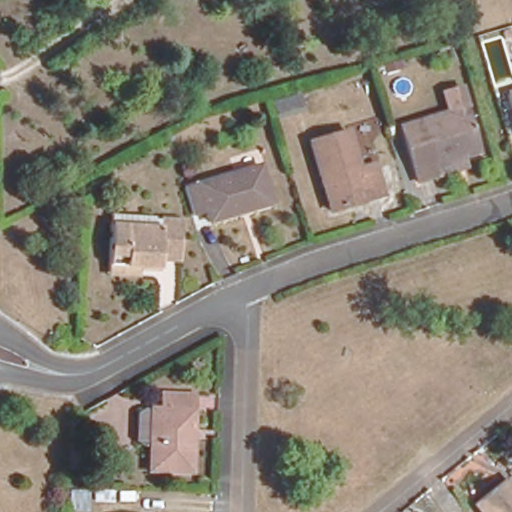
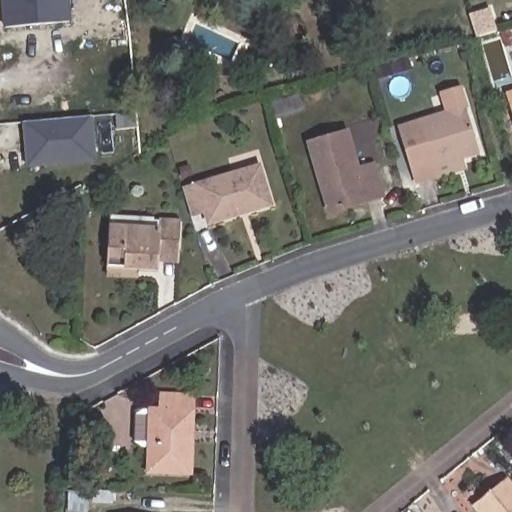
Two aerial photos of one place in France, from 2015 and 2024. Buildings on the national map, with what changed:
new [(72,22),(4,27),(1,0),(70,0),(72,22)]
unchanged [(399,137),(455,119),(452,106),(468,100),(489,161),(414,186),(399,137)]
new [(96,162),(26,167),(22,124),(91,118),(96,162)]
unchanged [(348,136),(360,172),(376,168),(384,200),(330,216),(310,147),(348,136)]
unchanged [(261,165),(271,202),(209,221),(206,210),(191,214),(184,187),(261,165)]
unchanged [(108,275),(108,265),(111,225),(159,227),(159,219),(182,220),(180,260),(160,260),(159,267),(140,267),(140,277),(108,275)]
unchanged [(196,487),(153,486),(156,422),(166,422),(166,407),(198,408),(196,487)]
unchanged [(84,451),(83,472),(68,472),(69,450),(84,451)]
unchanged [(507,482),(512,488),(512,512),(476,512),(474,508),(507,482)]

